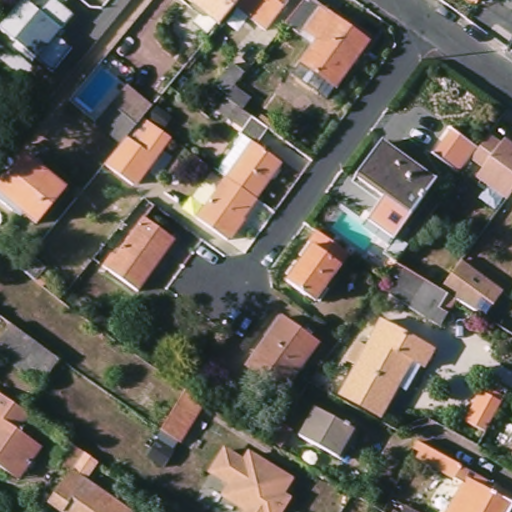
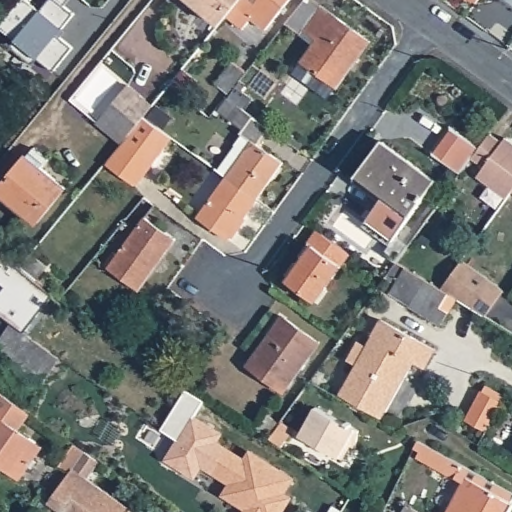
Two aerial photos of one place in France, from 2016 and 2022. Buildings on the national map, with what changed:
unchanged [(25,0),(39,11),(48,0),(70,0),(64,6),(73,14),(61,30),(55,36),(70,49),(52,71),(39,60),(17,41),(0,27),(23,0),(25,0)]
unchanged [(189,0),(238,0),(217,25),(189,0)]
unchanged [(236,6),(241,0),(291,0),(267,31),(236,6)]
unchanged [(332,99),(300,75),(307,64),(324,41),(309,30),(305,35),(292,26),(312,0),(317,0),(374,41),(340,87),(332,99)]
unchanged [(478,0),(484,0),(482,3),(478,0)]
unchanged [(482,3),(484,0),(512,0),(512,24),(482,3)]
unchanged [(240,135),(243,130),(216,111),(219,109),(220,107),(226,100),(227,99),(229,96),(215,84),(232,61),(247,74),(236,87),(252,98),(244,110),(256,119),(263,125),(267,127),(270,129),(258,145),(284,164),(257,201),(247,193),(230,181),(226,178),(216,171),(242,136),(240,135)]
unchanged [(129,86),(154,106),(143,119),(121,145),(97,125),(129,86)]
unchanged [(174,142),(139,185),(133,186),(106,164),(121,145),(143,119),(174,142)]
unchanged [(507,201),(477,179),(484,169),(471,161),(484,143),(490,136),(490,135),(502,144),(506,139),(512,143),(512,194),(507,201)]
unchanged [(446,159),(455,146),(467,155),(458,168),(446,159)]
unchanged [(371,221),(381,209),(385,204),(356,184),(383,148),(436,186),(406,227),(397,239),(371,221)]
unchanged [(38,224),(0,193),(0,191),(27,157),(66,189),(38,224)]
unchanged [(229,241),(197,218),(226,178),(230,181),(247,193),(257,201),(229,241)]
unchanged [(176,241),(140,292),(107,269),(145,217),(176,241)]
unchanged [(316,303),(287,283),(313,245),(309,242),(317,231),(348,254),(350,255),(316,303)]
unchanged [(503,288),(486,318),(455,300),(448,296),(441,292),(462,260),(503,288)]
unchanged [(446,314),(455,319),(445,332),(413,312),(415,310),(395,298),(410,272),(427,283),(441,292),(448,296),(455,300),(446,314)]
unchanged [(320,344),(285,394),(247,368),(282,318),(320,344)]
unchanged [(425,369),(415,362),(382,419),(340,394),(356,367),(346,362),(357,342),(367,347),(373,336),(372,335),(381,319),(436,350),(425,369)]
unchanged [(0,340),(12,324),(35,341),(61,360),(41,387),(0,356),(0,340)]
unchanged [(46,450),(22,483),(0,467),(0,392),(25,410),(33,415),(21,432),(46,450)]
unchanged [(467,422),(485,393),(504,405),(488,433),(467,422)]
unchanged [(181,449),(171,444),(161,436),(187,395),(204,406),(207,408),(181,449)]
unchanged [(360,432),(358,451),(351,447),(343,461),(300,436),(315,408),(360,432)]
unchanged [(280,449),(278,448),(267,441),(268,439),(256,431),(267,416),(280,425),(275,431),(287,438),(280,449)]
unchanged [(450,511),(439,505),(453,479),(416,459),(420,452),(415,449),(418,441),(424,444),(440,453),(478,474),(505,489),(512,493),(512,509),(511,512),(449,512),(450,511)]
unchanged [(50,505),(71,474),(61,467),(76,446),(86,453),(74,472),(130,512),(59,512),(50,505)]
unchanged [(282,494),(291,500),(285,510),(284,512),(250,512),(250,511),(227,496),(235,485),(215,473),(218,468),(229,451),(248,464),(253,455),(268,464),(291,479),(282,494)]
unchanged [(406,506),(418,512),(403,512),(406,506)]

